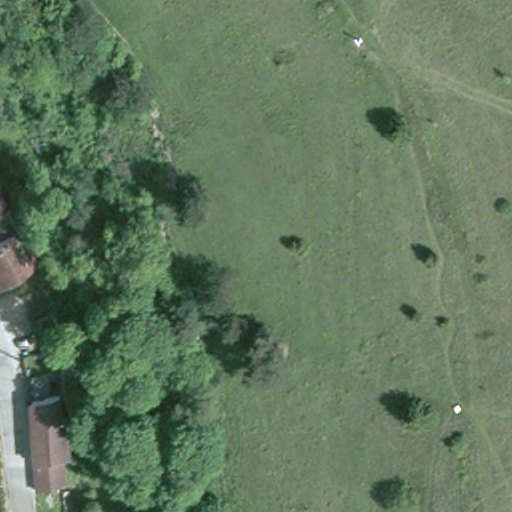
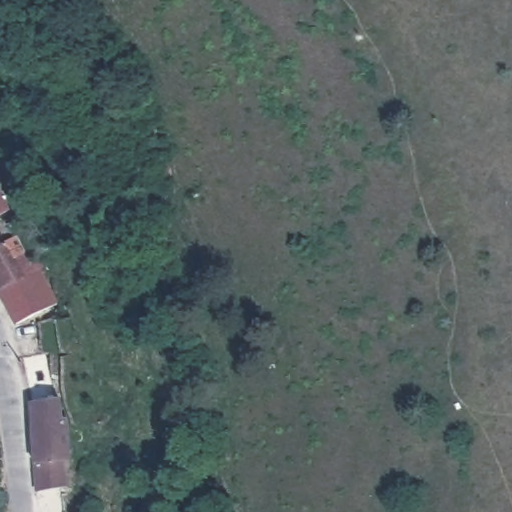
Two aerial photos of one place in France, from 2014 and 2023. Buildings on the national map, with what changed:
unchanged [(0,204),(0,199),(2,202),(0,204)]
unchanged [(2,233),(11,228),(36,261),(0,280),(0,230),(2,233)]
new [(57,303),(15,326),(0,298),(0,280),(36,261),(57,303)]
unchanged [(72,418),(80,456),(67,459),(70,482),(65,483),(42,487),(40,466),(37,401),(64,397),(67,418),(72,418)]

